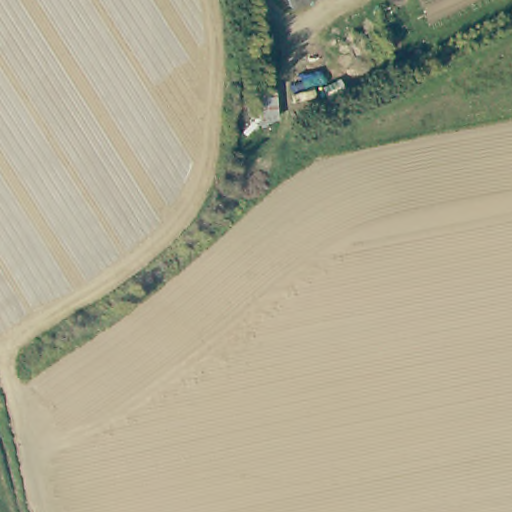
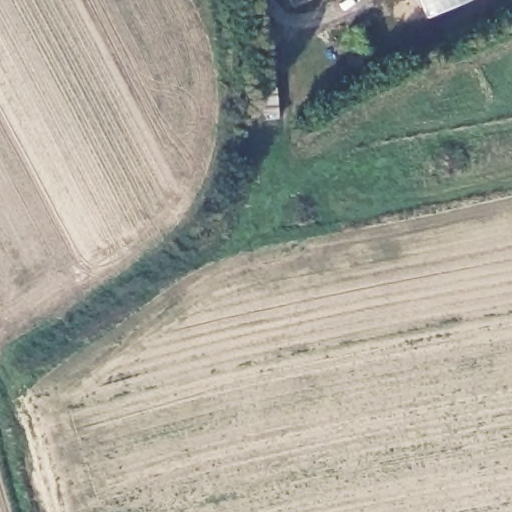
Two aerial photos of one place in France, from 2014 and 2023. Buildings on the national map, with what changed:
unchanged [(286,0),(310,0),(289,8),(286,0)]
new [(422,18),(414,0),(464,0),(422,18)]

